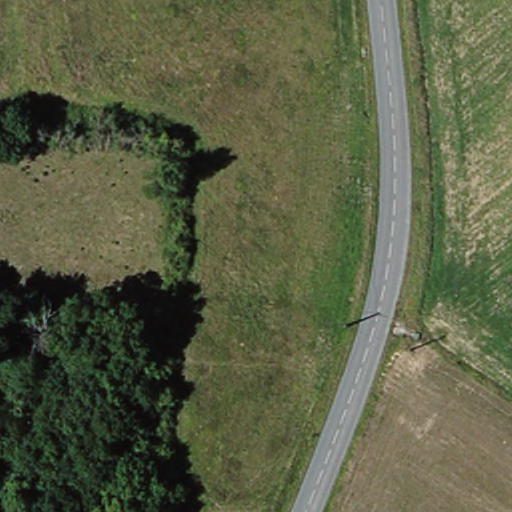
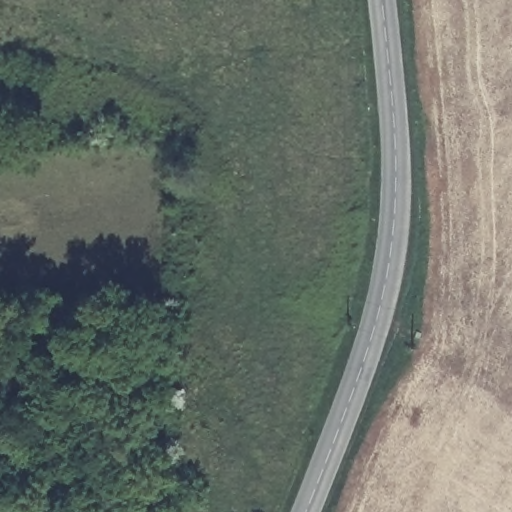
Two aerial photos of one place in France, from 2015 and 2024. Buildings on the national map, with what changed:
[]

